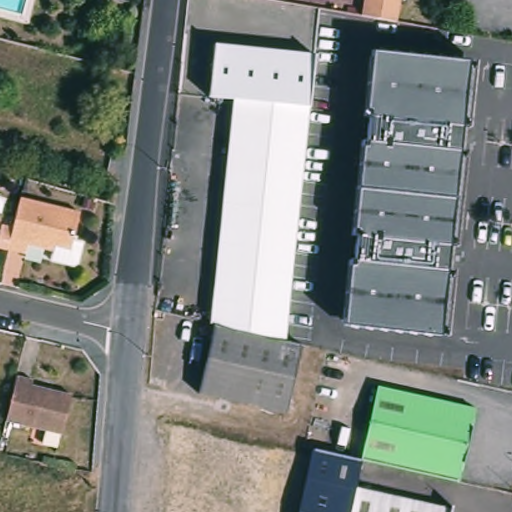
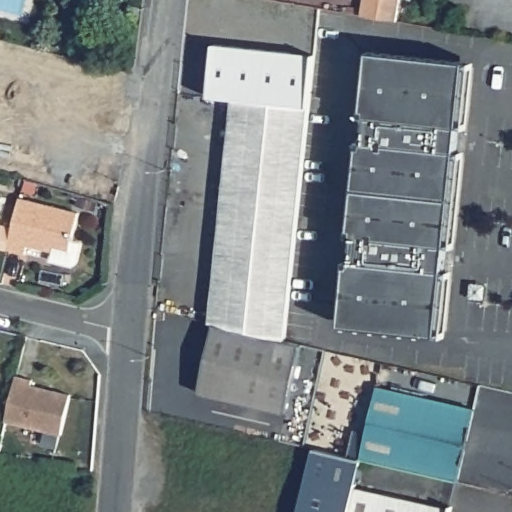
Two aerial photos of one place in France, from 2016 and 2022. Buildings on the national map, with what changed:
unchanged [(363,0),(398,0),(394,26),(366,21),(361,20),(359,20),(363,0)]
unchanged [(236,105),(237,100),(209,97),(214,46),(312,56),(308,112),(236,105)]
unchanged [(372,53),(474,64),(446,341),(345,327),(372,53)]
unchanged [(290,302),(289,310),(286,341),(214,325),(216,307),(236,105),(308,112),(290,302)]
unchanged [(71,244),(81,247),(76,267),(72,269),(50,263),(54,249),(45,246),(43,253),(27,249),(25,257),(6,252),(19,201),(79,217),(71,244)]
unchanged [(1,204),(0,208),(0,202),(1,204)]
unchanged [(0,251),(0,229),(10,231),(4,252),(0,251)]
unchanged [(303,344),(289,412),(200,393),(214,325),(286,341),(303,344)]
unchanged [(20,377),(21,372),(38,376),(36,381),(76,391),(67,431),(10,417),(20,377)]
unchanged [(373,387),(471,410),(455,481),(358,460),(373,387)]
unchanged [(353,489),(348,512),(297,512),(310,451),(359,462),(353,489)]
unchanged [(449,511),(449,512),(348,512),(353,489),(449,511)]

